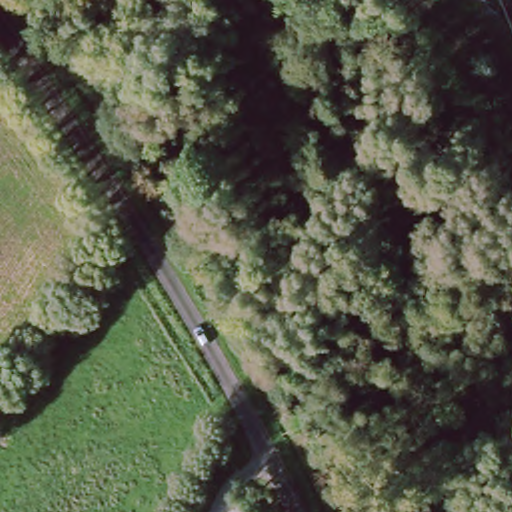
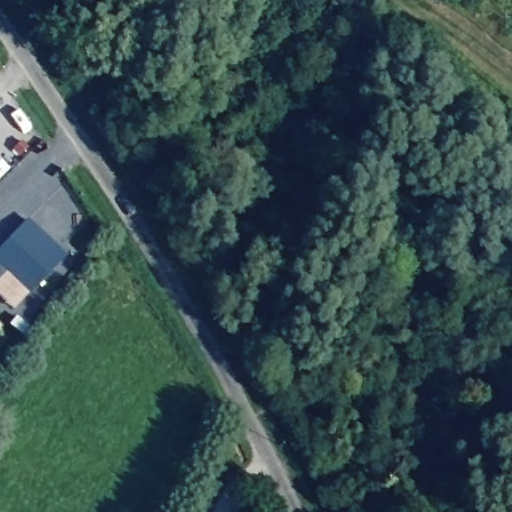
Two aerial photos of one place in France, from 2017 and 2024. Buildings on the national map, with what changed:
new [(66,255),(25,298),(20,293),(8,306),(0,298),(0,248),(27,220),(66,255)]

